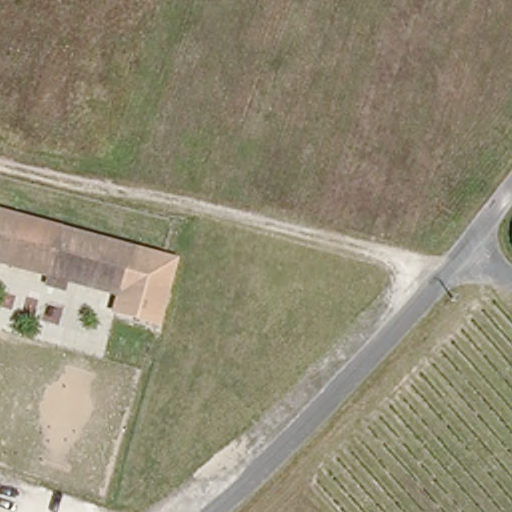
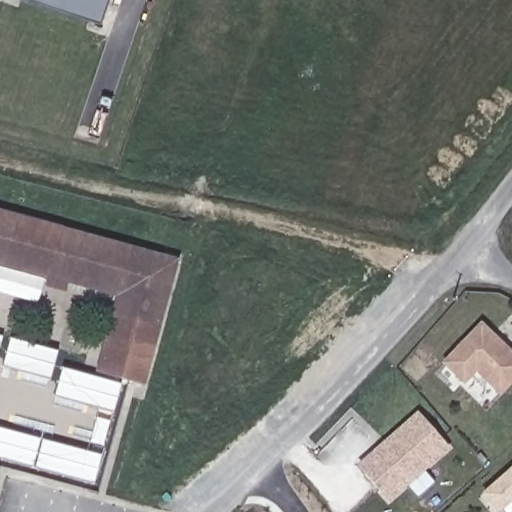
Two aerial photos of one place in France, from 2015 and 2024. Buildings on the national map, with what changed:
new [(25,0),(109,0),(100,25),(25,0)]
unchanged [(120,292),(0,256),(0,206),(136,246),(120,292)]
unchanged [(120,292),(136,246),(180,259),(162,329),(120,318),(113,316),(120,292)]
new [(37,302),(0,292),(0,256),(45,269),(37,302)]
new [(113,316),(120,318),(162,329),(145,384),(96,370),(113,316)]
new [(500,396),(476,373),(464,386),(441,361),(481,320),(512,351),(512,383),(500,396)]
new [(0,345),(0,335),(3,336),(0,345)]
new [(10,338),(58,351),(50,379),(2,367),(10,338)]
new [(62,367),(121,383),(114,412),(54,397),(62,367)]
new [(388,503),(354,464),(418,409),(451,448),(388,503)]
new [(32,467),(0,458),(0,427),(39,438),(32,467)]
new [(100,455),(94,482),(34,467),(42,439),(100,455)]
new [(501,512),(498,512),(482,494),(512,467),(512,502),(501,512)]

